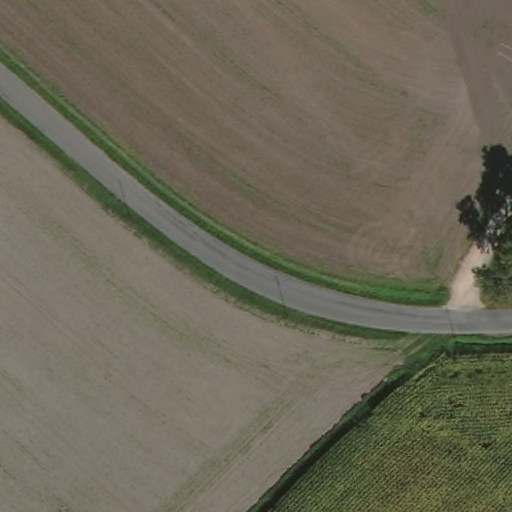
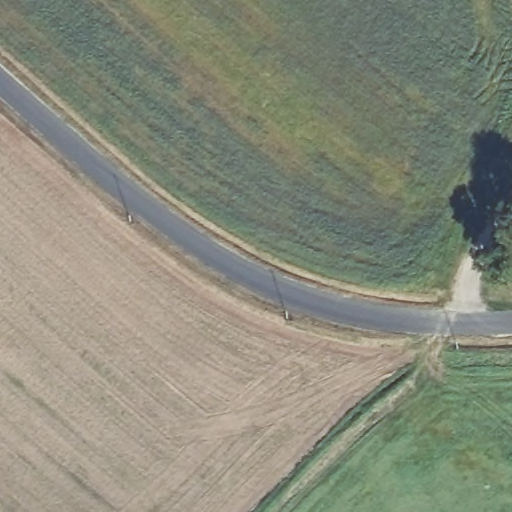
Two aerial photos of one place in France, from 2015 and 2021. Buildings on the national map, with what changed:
[]

